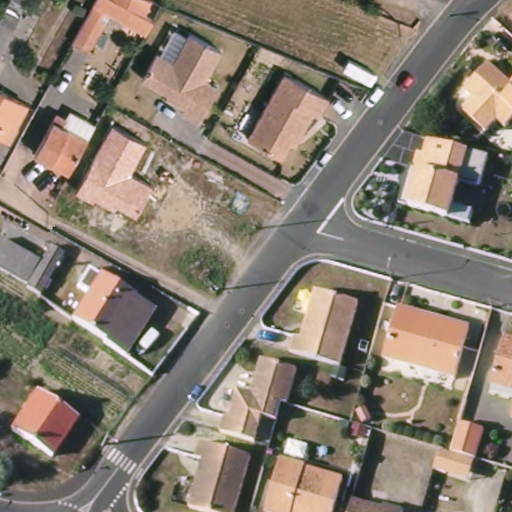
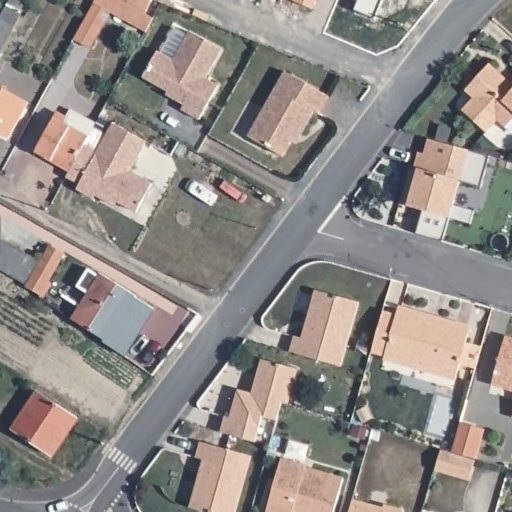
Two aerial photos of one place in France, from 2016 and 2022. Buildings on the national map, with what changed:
unchanged [(8,4),(10,0),(24,0),(19,9),(22,11),(0,53),(0,19),(8,4)]
unchanged [(154,19),(146,33),(103,9),(89,35),(79,30),(89,11),(95,0),(151,0),(145,14),(154,19)]
unchanged [(180,112),(183,107),(165,98),(167,90),(142,78),(159,50),(171,24),(221,48),(205,78),(218,86),(199,119),(180,112)]
unchanged [(500,119),(489,131),(465,109),(475,97),(467,89),(491,62),(512,82),(512,123),(508,126),(500,119)]
unchanged [(247,139),(285,71),(330,94),(318,115),(312,112),(293,145),(288,143),(281,155),(247,139)]
unchanged [(27,103),(7,138),(0,134),(0,88),(27,103)]
unchanged [(35,158),(57,118),(67,123),(64,129),(89,143),(89,144),(70,177),(35,158)]
unchanged [(118,203),(115,207),(78,188),(112,124),(148,141),(132,172),(152,182),(136,213),(118,203)]
unchanged [(405,207),(416,166),(418,150),(426,153),(429,139),(489,154),(479,188),(460,182),(455,205),(471,209),(467,223),(405,207)]
unchanged [(1,239),(40,260),(26,285),(0,271),(0,241),(1,239)]
unchanged [(27,288),(51,246),(64,254),(40,295),(27,288)]
unchanged [(105,340),(72,320),(87,296),(81,283),(90,270),(99,276),(101,274),(135,296),(134,300),(142,314),(147,306),(154,309),(124,357),(122,355),(113,349),(105,344),(105,340)]
unchanged [(312,293),(356,306),(338,369),(287,355),(292,340),(299,342),(305,322),(312,293)]
unchanged [(458,378),(388,360),(402,308),(472,327),(458,378)]
unchanged [(505,338),(512,340),(512,391),(492,385),(505,338)]
unchanged [(280,406),(275,424),(260,420),(253,445),(219,436),(224,420),(228,422),(236,394),(250,398),(250,397),(260,363),(295,373),(285,407),(280,406)]
unchanged [(51,456),(11,429),(36,391),(77,418),(51,456)]
unchanged [(512,415),(512,418),(511,418),(512,415)]
unchanged [(482,435),(473,465),(450,458),(458,429),(482,435)]
unchanged [(188,511),(196,483),(200,485),(206,465),(194,461),(199,446),(249,460),(235,512),(190,512),(188,511)]
unchanged [(285,459),(310,464),(308,468),(345,478),(336,512),(270,512),(285,459)]
unchanged [(395,512),(396,508),(409,512),(352,512),(355,500),(395,512)]

